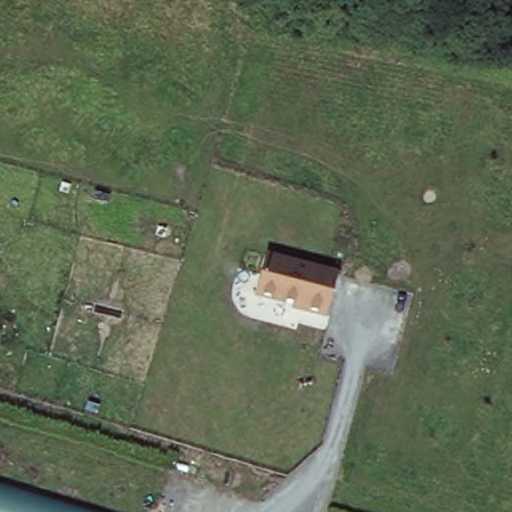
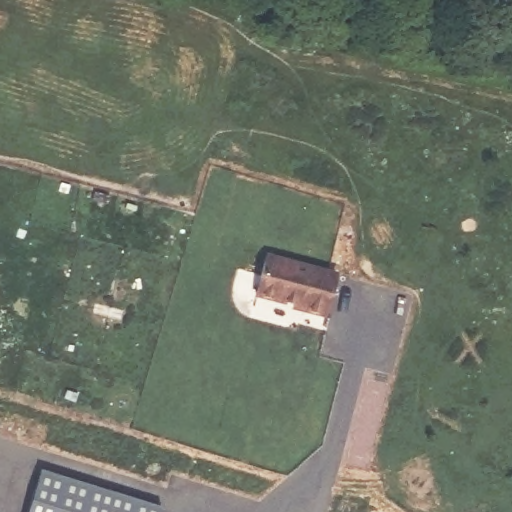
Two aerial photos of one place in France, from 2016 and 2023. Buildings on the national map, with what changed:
unchanged [(326,315),(255,295),(266,251),(336,270),(326,315)]
new [(163,512),(21,512),(37,464),(165,506),(163,512)]
demolished [(0,512),(0,477),(108,512),(0,512)]

